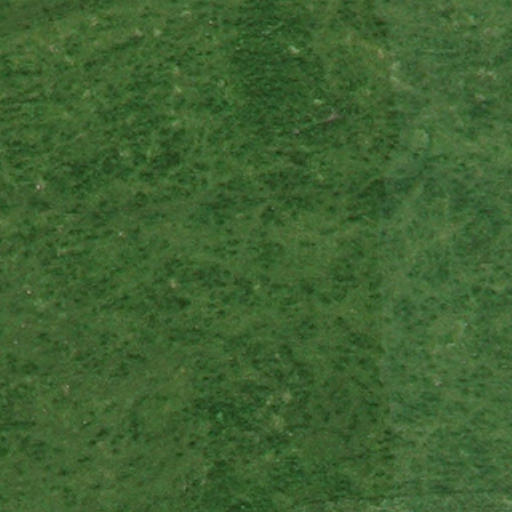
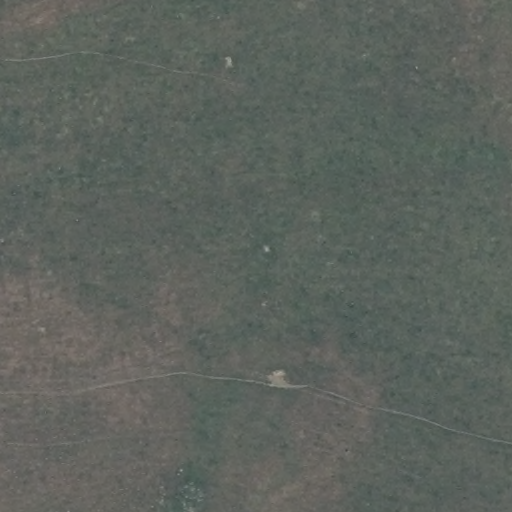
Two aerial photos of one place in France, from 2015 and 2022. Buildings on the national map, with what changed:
[]

